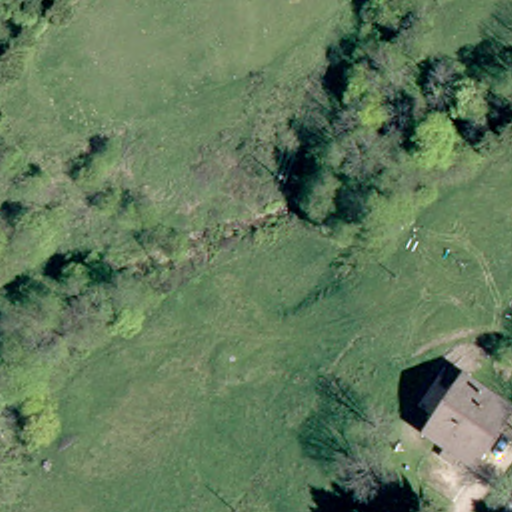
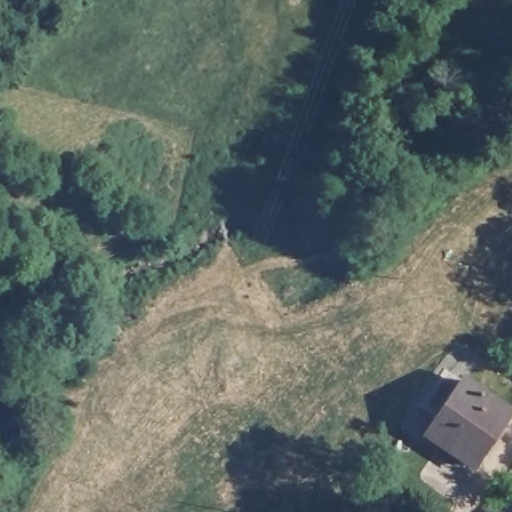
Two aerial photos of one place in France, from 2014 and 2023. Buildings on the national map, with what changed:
unchanged [(457,376),(505,410),(467,466),(456,458),(450,467),(430,453),(436,445),(419,433),(457,376)]

